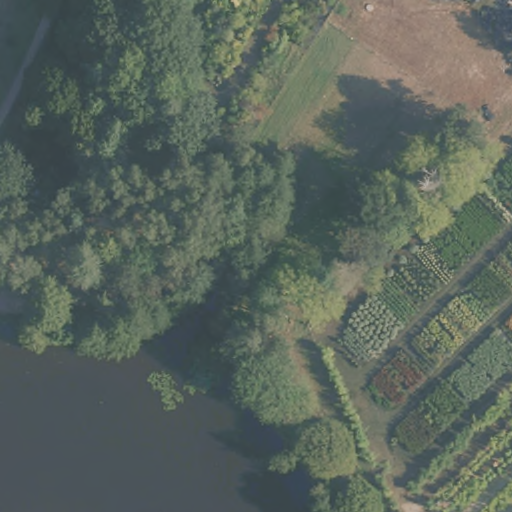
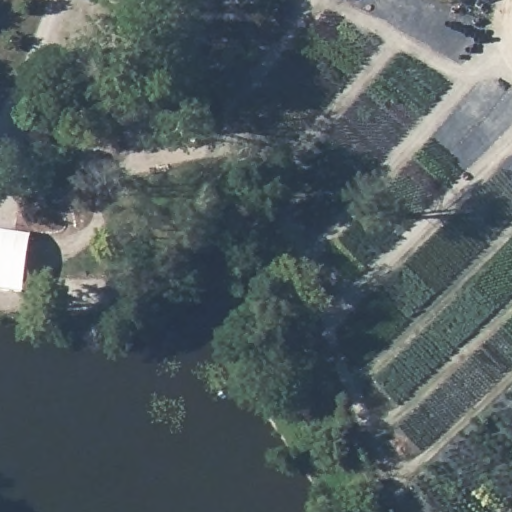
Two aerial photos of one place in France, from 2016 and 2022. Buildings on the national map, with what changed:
new [(31,234),(21,292),(0,289),(0,230),(31,234)]

